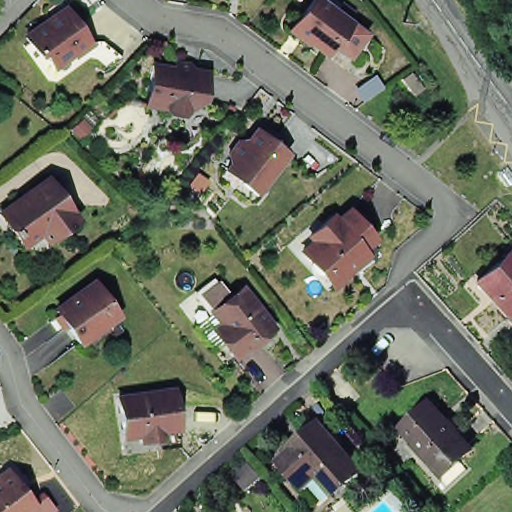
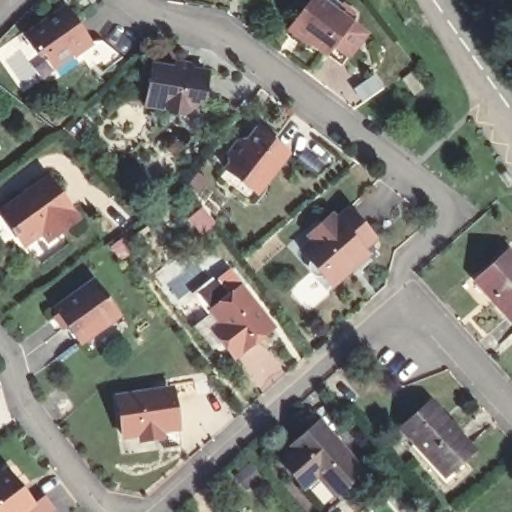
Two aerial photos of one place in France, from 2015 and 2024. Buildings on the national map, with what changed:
unchanged [(320,50),(316,54),(280,28),(302,0),(310,0),(326,12),(332,4),(345,13),(338,21),(340,22),(355,34),(335,61),(320,50)]
unchanged [(33,61),(20,42),(62,14),(87,50),(70,62),(67,57),(47,71),(37,58),(33,61)]
unchanged [(166,74),(167,67),(177,69),(181,75),(197,77),(193,106),(172,120),(160,118),(156,113),(137,110),(143,70),(166,74)]
unchanged [(412,72),(423,88),(414,95),(402,79),(412,72)]
unchanged [(72,130),(82,119),(90,126),(78,137),(72,130)]
unchanged [(220,182),(226,175),(235,164),(229,160),(239,146),(245,151),(257,134),(288,158),(261,193),(251,207),(220,182)]
unchanged [(42,232),(25,245),(18,234),(17,235),(12,230),(15,227),(3,210),(24,195),(25,197),(33,191),(32,189),(48,177),(78,220),(61,232),(48,242),(42,232)]
unchanged [(287,245),(317,219),(322,224),(332,216),(336,221),(348,209),(375,238),(368,243),(378,254),(372,260),(367,255),(338,280),(327,290),(287,245)]
unchanged [(475,279),(507,251),(512,255),(512,320),(475,279)]
unchanged [(119,314),(114,317),(85,339),(80,342),(56,310),(95,282),(119,314)]
unchanged [(218,330),(227,324),(217,311),(247,287),(277,327),(240,357),(218,330)]
unchanged [(115,449),(113,431),(107,392),(145,387),(162,384),(163,389),(168,423),(171,441),(115,449)]
unchanged [(475,452),(460,464),(458,462),(442,476),(402,431),(432,404),(475,452)]
unchanged [(312,467),(298,480),(283,462),(297,450),(296,448),(325,424),(367,474),(338,498),(312,467)]
unchanged [(35,508),(30,512),(0,512),(0,484),(10,476),(35,508)]

